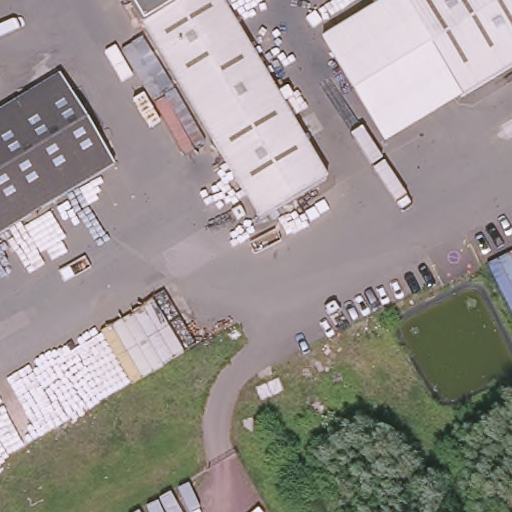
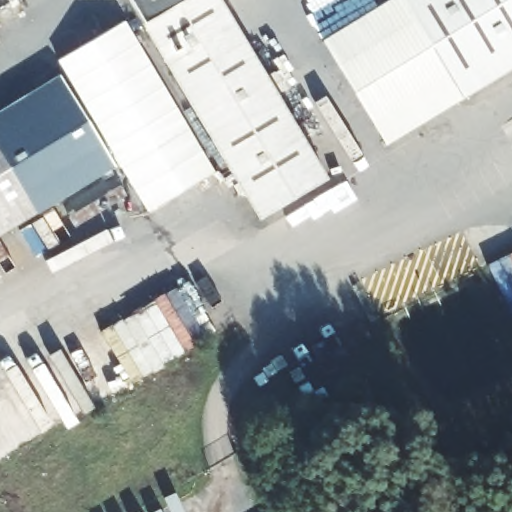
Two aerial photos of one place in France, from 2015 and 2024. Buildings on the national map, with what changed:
unchanged [(323,182),(257,223),(142,26),(127,0),(214,0),(323,182)]
unchanged [(422,29),(460,93),(379,140),(321,42),(388,0),(405,0),(422,29)]
unchanged [(422,29),(405,0),(471,0),(422,29)]
unchanged [(471,0),(512,0),(512,61),(460,93),(422,29),(471,0)]
new [(216,174),(150,211),(60,61),(127,25),(216,174)]
unchanged [(107,166),(0,230),(0,110),(54,77),(107,166)]
new [(487,266),(512,253),(512,314),(487,266)]

